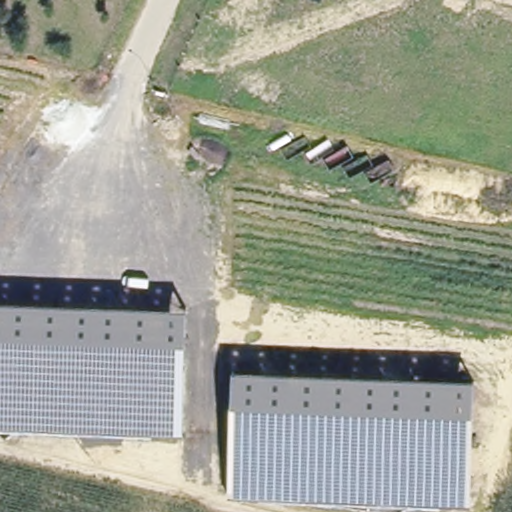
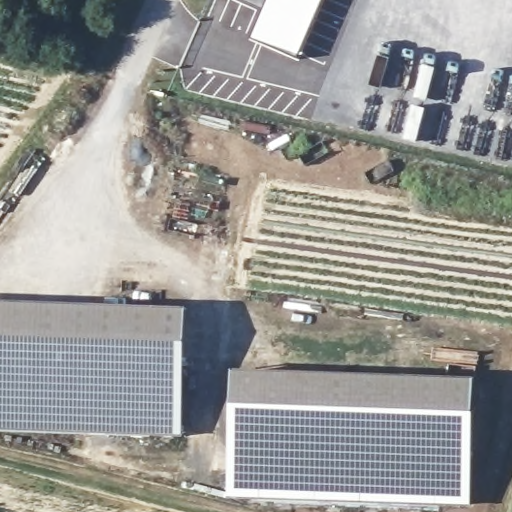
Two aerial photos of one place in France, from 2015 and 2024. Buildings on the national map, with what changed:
new [(323,0),(297,59),(249,39),(266,0),(323,0)]
unchanged [(186,432),(33,427),(0,426),(0,304),(191,311),(186,432)]
unchanged [(477,412),(476,505),(458,505),(347,502),(228,498),(229,473),(232,373),(478,381),(477,412)]

